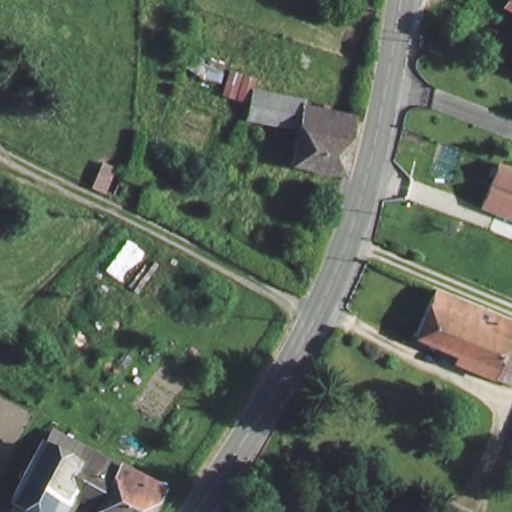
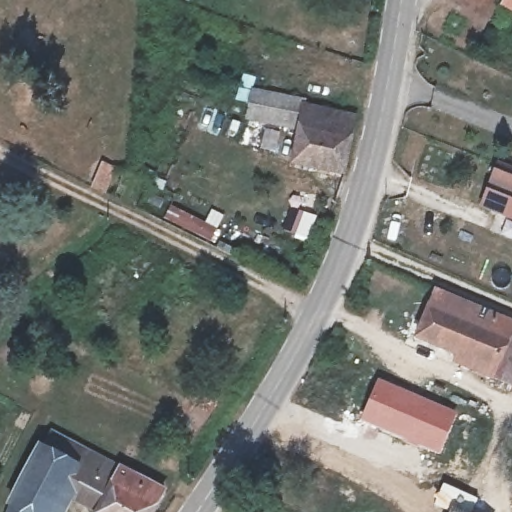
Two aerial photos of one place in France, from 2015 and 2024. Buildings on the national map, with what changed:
unchanged [(230,67),(253,75),(245,99),(222,91),(230,67)]
unchanged [(301,107),(298,126),(246,116),(253,88),(303,99),(301,107)]
unchanged [(354,156),(351,165),(294,160),(298,126),(301,107),(303,99),(362,111),(354,156)]
unchanged [(512,163),(512,212),(479,198),(497,157),(512,163)]
unchanged [(111,166),(133,181),(114,201),(97,192),(111,166)]
unchanged [(508,382),(486,374),(488,366),(417,330),(434,288),(512,322),(512,373),(508,382)]
new [(377,378),(457,411),(439,455),(409,444),(359,420),(377,378)]
unchanged [(103,512),(68,491),(59,500),(71,508),(69,512),(37,512),(13,498),(46,442),(124,488),(138,472),(166,492),(155,512),(103,512)]
new [(463,512),(450,512),(452,507),(463,512)]
unchanged [(446,512),(438,512),(439,509),(446,512)]

